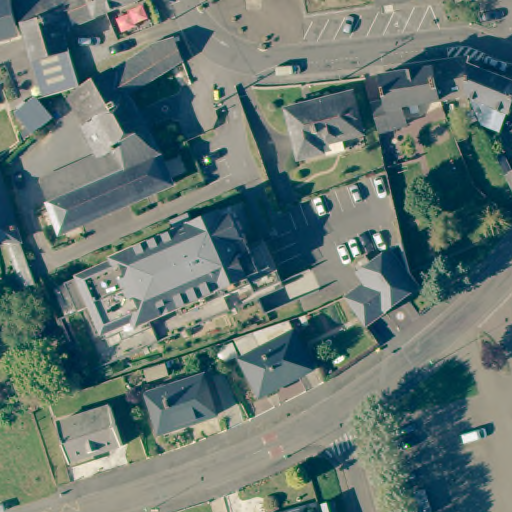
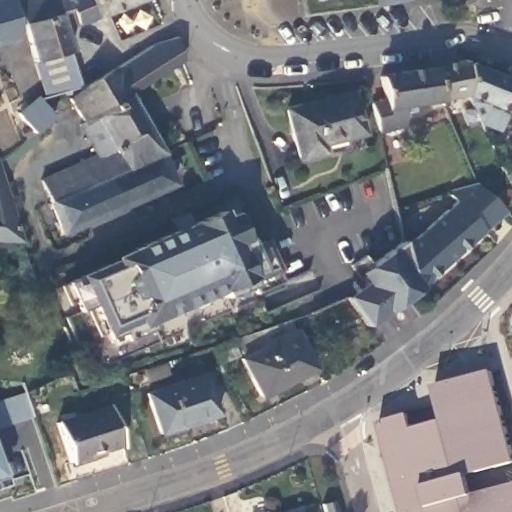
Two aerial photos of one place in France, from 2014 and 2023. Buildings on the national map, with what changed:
unchanged [(14,4),(23,37),(0,42),(0,0),(13,0),(14,4)]
unchanged [(78,25),(72,11),(59,16),(72,47),(75,53),(37,62),(36,58),(27,25),(24,26),(17,3),(25,0),(93,0),(99,17),(78,25)]
unchanged [(106,15),(99,17),(93,0),(142,0),(106,15)]
unchanged [(319,1),(318,0),(320,0),(319,1)]
unchanged [(407,1),(374,6),(373,0),(407,0),(407,1)]
unchanged [(181,43),(176,44),(182,55),(185,61),(130,97),(151,133),(158,149),(175,186),(63,235),(47,189),(44,182),(101,158),(85,130),(90,127),(77,107),(74,103),(86,94),(112,75),(114,74),(152,46),(165,42),(179,37),(181,43)]
unchanged [(75,53),(79,69),(79,70),(83,84),(85,92),(49,102),(37,62),(75,53)]
unchanged [(387,101),(382,78),(433,69),(464,63),(512,82),(512,109),(510,113),(467,97),(441,102),(403,109),(407,128),(394,130),(379,133),(372,104),(387,101)]
unchanged [(359,136),(319,147),(321,155),(296,161),(284,113),(349,95),(359,136)]
unchanged [(53,125),(38,137),(22,118),(41,103),(45,107),(57,122),(53,125)]
unchanged [(500,172),(512,165),(512,198),(500,172)]
unchanged [(20,287),(3,239),(0,239),(0,183),(35,282),(20,287)]
unchanged [(120,259),(122,263),(135,257),(132,250),(173,232),(168,222),(187,213),(192,223),(218,212),(221,218),(234,213),(245,239),(233,244),(237,253),(262,242),(280,282),(254,294),(250,286),(223,298),(219,290),(149,321),(152,329),(123,342),(120,334),(107,340),(91,306),(78,312),(65,284),(120,259)]
unchanged [(344,297),(349,292),(362,282),(375,272),(368,263),(400,238),(408,269),(418,284),(384,310),(364,325),(344,297)]
unchanged [(288,326),(311,375),(259,401),(240,363),(260,354),(252,337),(288,326)]
new [(409,428),(437,421),(426,386),(490,370),(512,456),(512,512),(399,512),(377,425),(408,416),(409,428)]
unchanged [(216,414),(158,434),(146,395),(203,375),(216,414)]
new [(0,428),(0,404),(25,393),(34,418),(0,428)]
unchanged [(55,423),(92,411),(109,405),(120,444),(106,449),(68,463),(55,423)]
new [(0,478),(0,474),(1,478),(0,478)]
unchanged [(336,512),(323,512),(322,507),(334,504),(336,512)]
unchanged [(302,512),(280,512),(300,507),(302,512)]

